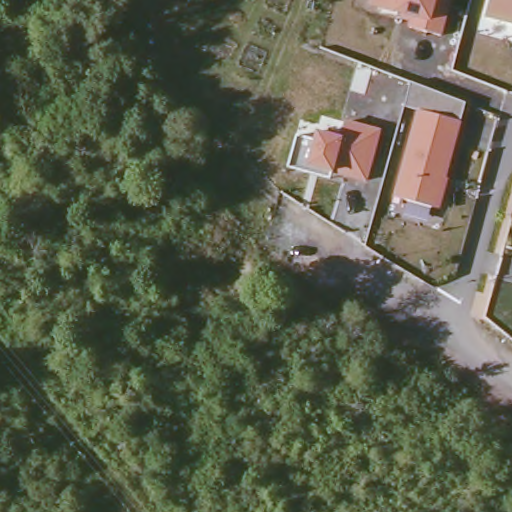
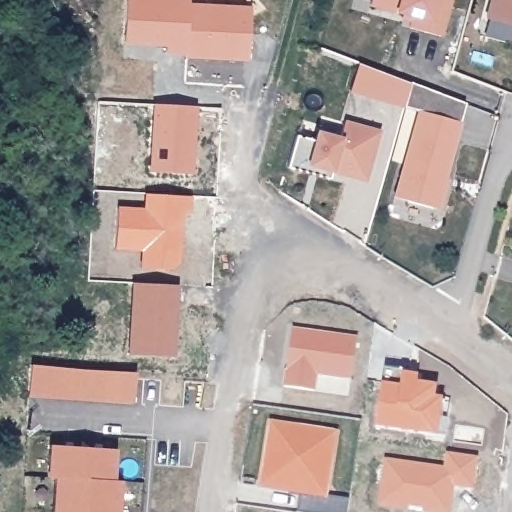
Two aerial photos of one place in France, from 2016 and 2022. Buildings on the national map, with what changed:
unchanged [(408,28),(409,23),(400,20),(400,15),(370,7),(372,0),(454,0),(444,37),(408,28)]
unchanged [(491,0),(512,0),(512,25),(486,17),(491,0)]
new [(127,2),(189,5),(189,10),(187,57),(166,56),(167,48),(124,45),(127,2)]
new [(187,57),(189,10),(212,11),(212,8),(241,10),(250,20),(248,64),(186,60),(187,57)]
new [(467,103),(463,123),(417,111),(352,93),(360,64),(467,103)]
new [(197,107),(194,175),(152,172),(156,105),(197,107)]
unchanged [(417,111),(463,123),(447,178),(450,179),(441,211),(394,196),(417,111)]
unchanged [(333,174),(330,181),(288,168),(297,136),(314,141),(317,131),(340,137),(345,121),(383,131),(368,185),(333,174)]
new [(177,261),(168,270),(141,268),(142,249),(114,248),(116,208),(144,210),(145,194),(188,196),(187,213),(180,212),(180,229),(178,242),(177,261)]
new [(132,283),(176,286),(172,357),(128,355),(132,283)]
new [(292,331),(357,341),(351,381),(317,376),(314,392),(284,388),(292,331)]
new [(30,365),(82,370),(135,373),(133,404),(28,397),(30,365)]
new [(382,369),(402,372),(401,377),(415,379),(415,387),(432,389),(430,402),(443,403),(441,421),(436,420),(433,437),(374,428),(382,369)]
new [(331,454),(328,474),(325,497),(348,500),(347,512),(296,512),(299,494),(260,488),(270,424),(334,434),(331,454)]
new [(116,452),(113,483),(120,483),(118,512),(53,512),(55,479),(47,479),(49,446),(116,452)]
new [(445,470),(447,454),(475,458),(470,489),(448,485),(447,494),(450,495),(448,512),(427,512),(417,511),(417,508),(378,502),(385,462),(445,470)]

